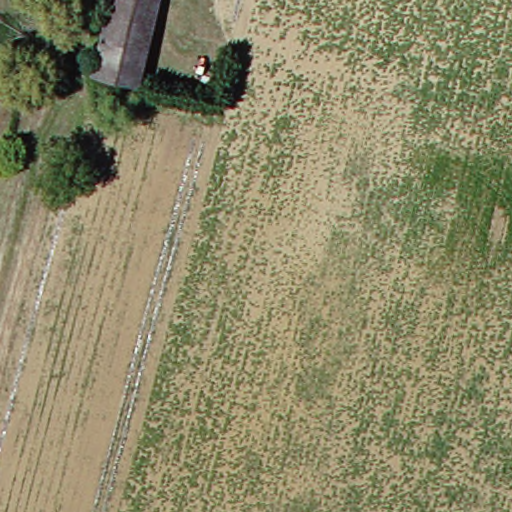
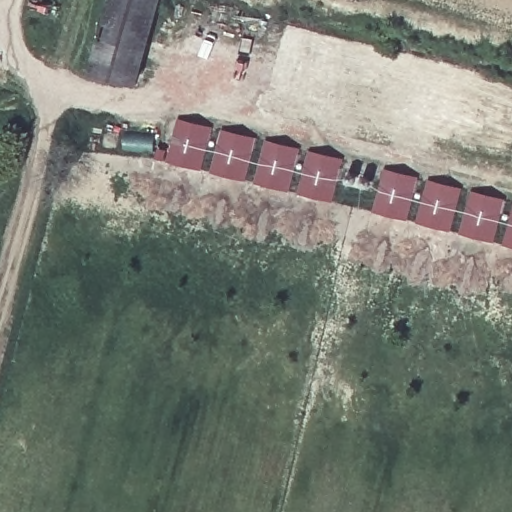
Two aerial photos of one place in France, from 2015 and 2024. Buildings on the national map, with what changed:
unchanged [(92,79),(118,0),(162,0),(133,89),(92,79)]
new [(202,172),(168,163),(179,120),(212,129),(202,172)]
new [(222,131),(256,139),(245,182),(212,174),(222,131)]
new [(266,142),(300,150),(289,193),(255,185),(266,142)]
new [(309,153),(342,160),(332,204),(299,195),(309,153)]
new [(408,222),(373,214),(384,170),(418,179),(408,222)]
new [(452,233),(417,224),(428,181),(462,189),(452,233)]
new [(496,244),(462,235),(472,192),(506,200),(496,244)]
new [(512,217),(512,248),(505,246),(512,217)]

